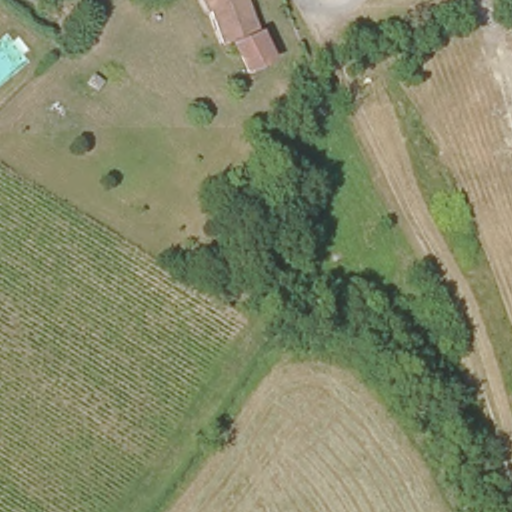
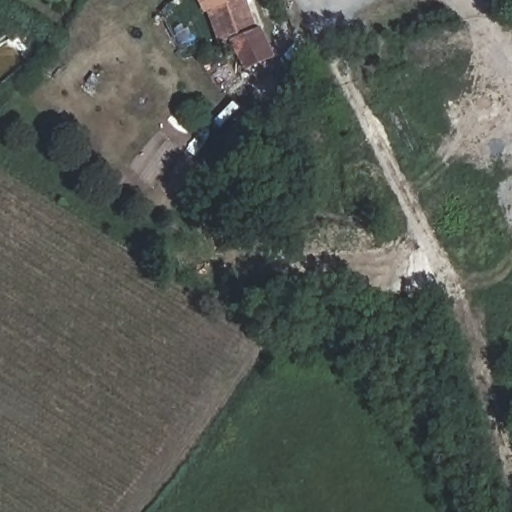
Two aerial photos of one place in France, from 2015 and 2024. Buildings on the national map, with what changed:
unchanged [(259,53),(259,56),(230,67),(204,7),(199,10),(195,0),(237,0),(259,53)]

